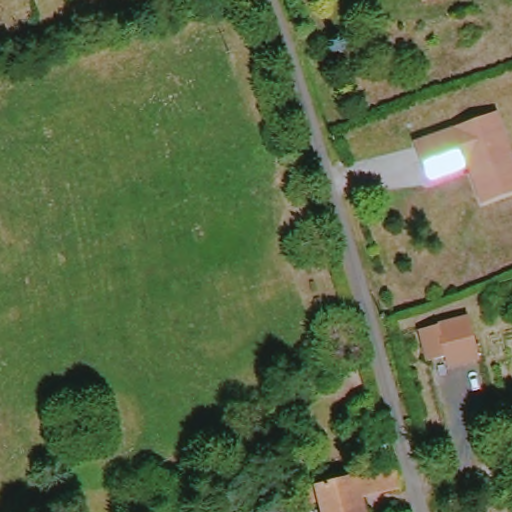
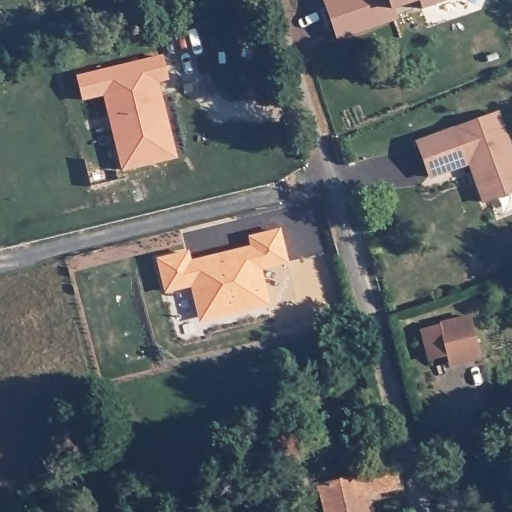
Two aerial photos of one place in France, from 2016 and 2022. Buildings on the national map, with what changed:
new [(337,41),(323,0),(449,0),(421,9),(417,1),(396,8),(398,19),(337,41)]
demolished [(425,7),(423,0),(447,0),(425,7)]
new [(166,59),(171,80),(148,86),(151,99),(154,98),(168,158),(127,168),(109,95),(89,100),(84,79),(166,59)]
unchanged [(498,108),(512,148),(512,187),(484,197),(470,156),(429,170),(418,136),(498,108)]
new [(186,255),(189,265),(252,249),(249,239),(278,233),(286,264),(259,270),(268,306),(245,312),(244,308),(236,310),(237,314),(217,319),(211,316),(199,319),(191,287),(165,294),(157,263),(186,255)]
unchanged [(468,317),(477,358),(445,364),(444,355),(425,358),(420,327),(468,317)]
unchanged [(298,511),(294,492),(357,475),(398,466),(403,488),(364,499),(367,512),(317,512),(316,508),(298,511)]

